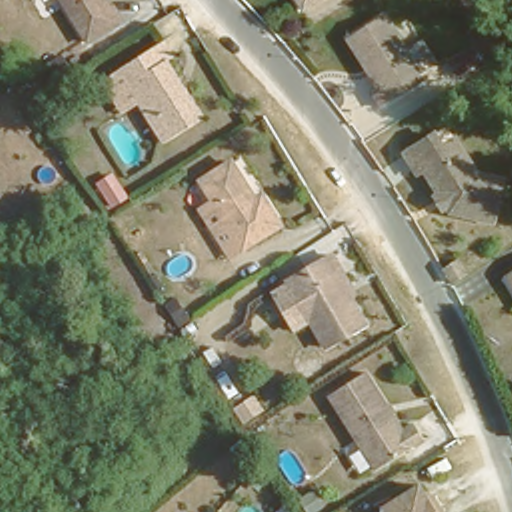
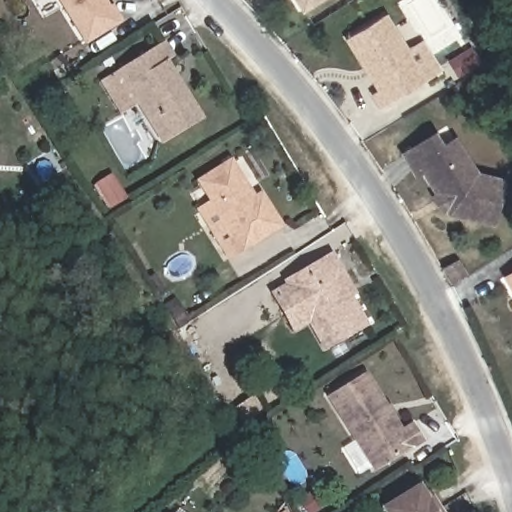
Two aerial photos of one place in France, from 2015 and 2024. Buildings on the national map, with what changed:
unchanged [(109,11),(117,24),(82,46),(55,0),(100,0),(106,10),(109,11)]
unchanged [(320,0),(296,15),(288,0),(320,0)]
unchanged [(380,113),(371,97),(378,93),(347,41),(382,19),(405,56),(423,86),(380,113)]
unchanged [(199,119),(162,144),(116,71),(161,44),(170,58),(164,64),(172,76),(168,80),(174,89),(178,86),(199,119)]
unchanged [(431,204),(436,199),(420,175),(415,178),(403,160),(432,141),(440,154),(453,145),(468,168),(476,182),(500,188),(492,227),(450,218),(446,213),(439,216),(431,204)]
unchanged [(255,208),(272,236),(224,267),(208,242),(222,233),(197,192),(226,174),(245,203),(241,207),(245,213),(249,209),(255,208)]
unchanged [(466,255),(478,274),(461,284),(451,266),(466,255)]
unchanged [(334,283),(346,304),(363,332),(326,354),(310,328),(290,294),(288,291),(332,264),(340,278),(334,283)]
unchanged [(512,277),(512,298),(502,283),(512,277)]
unchanged [(358,375),(396,433),(405,427),(416,445),(371,474),(323,398),(358,375)]
unchanged [(427,502),(428,501),(434,512),(379,512),(412,488),(423,504),(427,502)]

